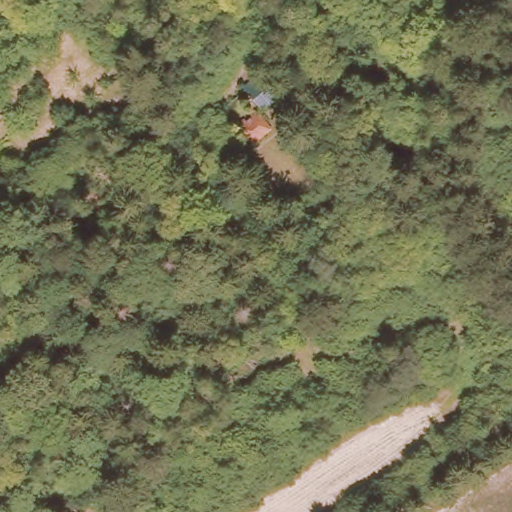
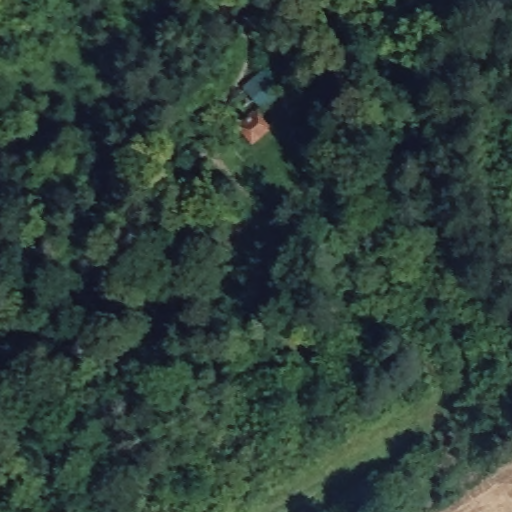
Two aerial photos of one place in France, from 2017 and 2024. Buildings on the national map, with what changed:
unchanged [(266,75),(280,95),(262,112),(247,93),(266,75)]

